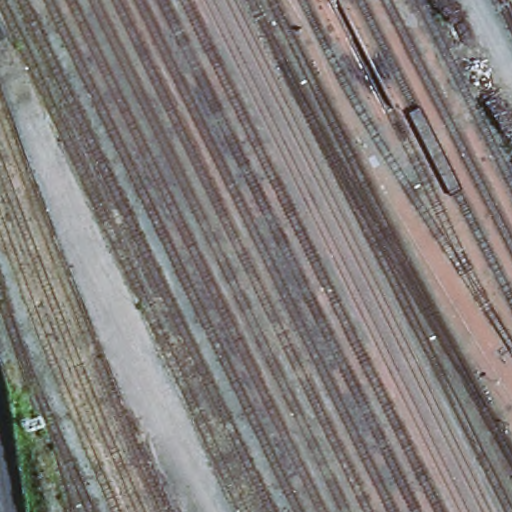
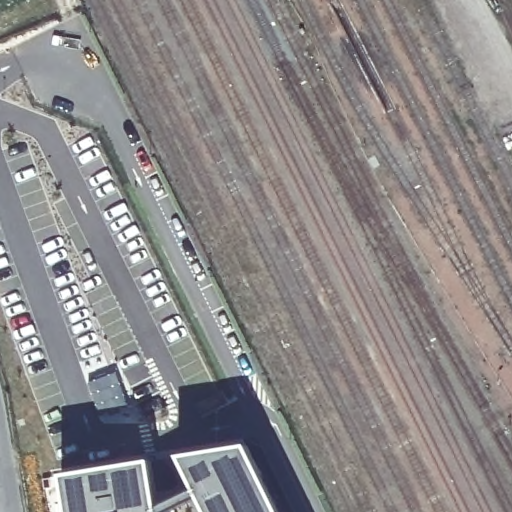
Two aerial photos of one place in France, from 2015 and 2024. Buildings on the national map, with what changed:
new [(116,370),(127,404),(97,410),(87,381),(116,370)]
new [(281,512),(207,512),(187,478),(177,454),(246,442),(281,512)]
new [(160,512),(64,512),(54,474),(151,458),(160,512)]

